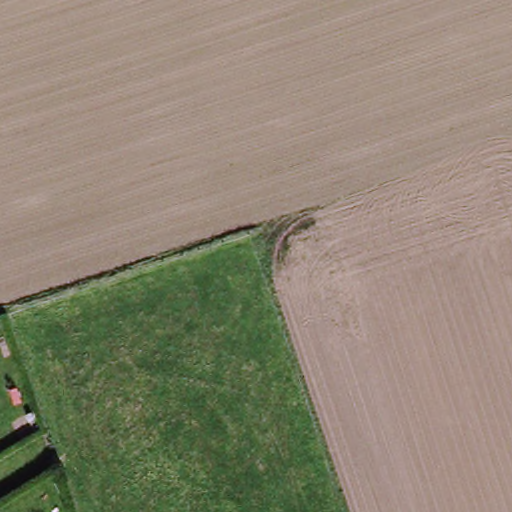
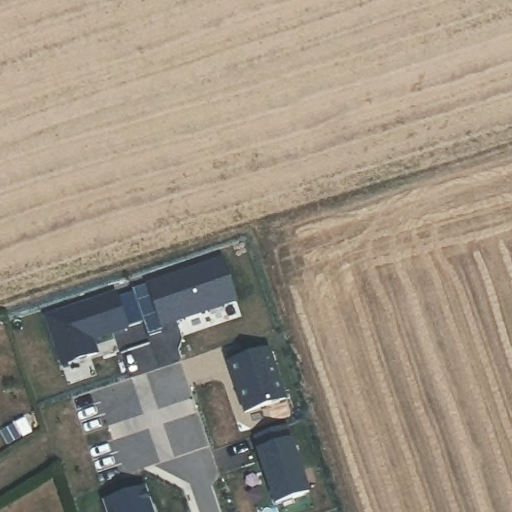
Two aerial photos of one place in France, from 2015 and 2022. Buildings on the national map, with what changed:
new [(222,260),(237,302),(162,328),(147,285),(222,260)]
new [(116,295),(128,329),(93,341),(97,355),(62,366),(46,318),(116,295)]
new [(269,351),(286,400),(245,414),(229,364),(269,351)]
new [(287,427),(310,495),(274,506),(257,454),(260,453),(255,438),(287,427)]
new [(145,490),(152,512),(107,512),(105,504),(145,490)]

